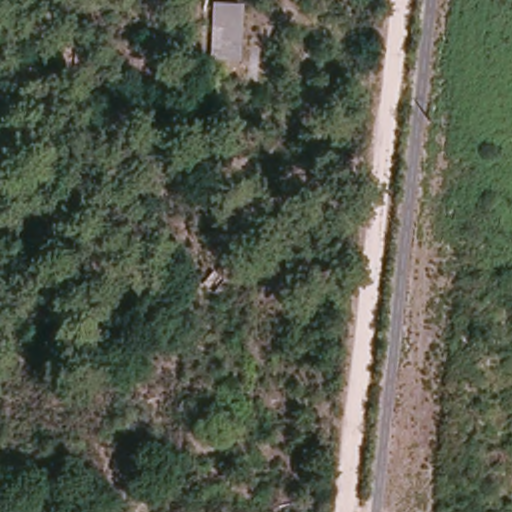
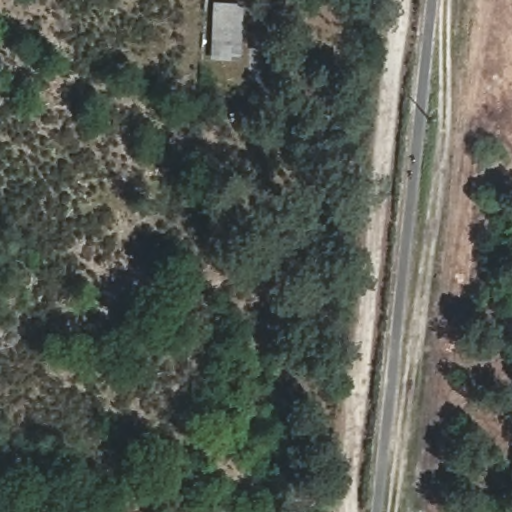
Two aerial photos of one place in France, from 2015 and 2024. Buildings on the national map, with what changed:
unchanged [(241,59),(211,57),(216,2),(243,4),(241,59)]

